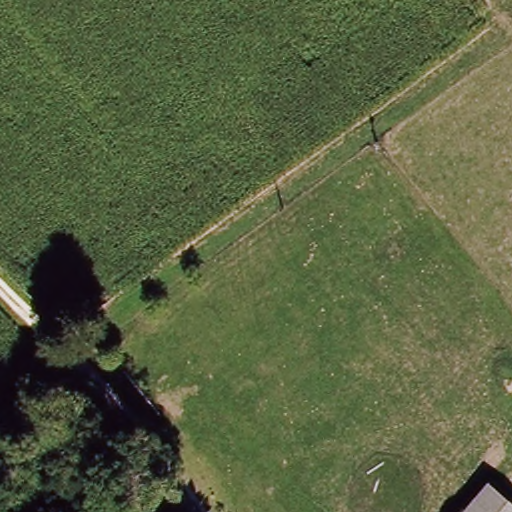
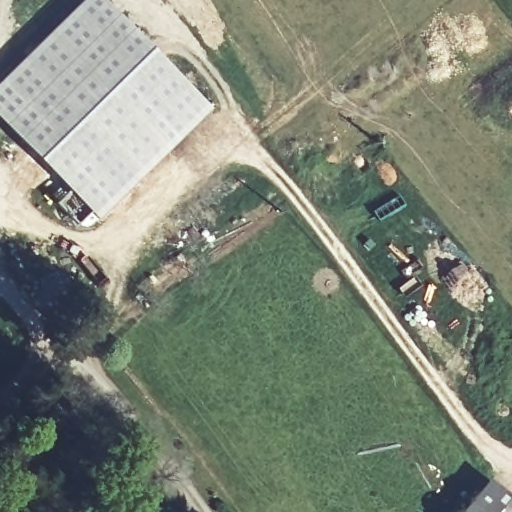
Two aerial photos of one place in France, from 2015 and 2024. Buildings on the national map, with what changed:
new [(86,0),(106,0),(214,109),(100,219),(0,117),(0,84),(86,0)]
unchanged [(512,512),(465,512),(493,480),(503,489),(512,498),(512,512)]

